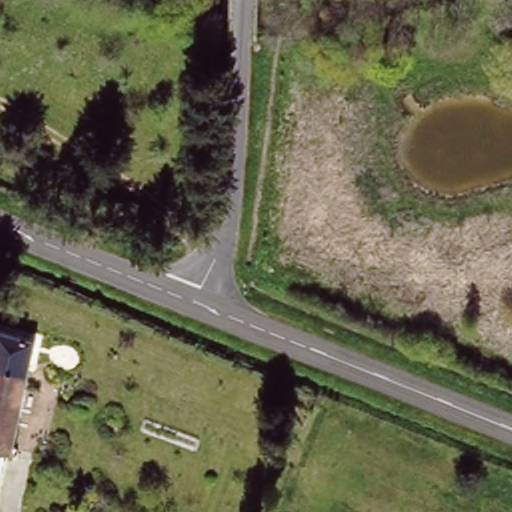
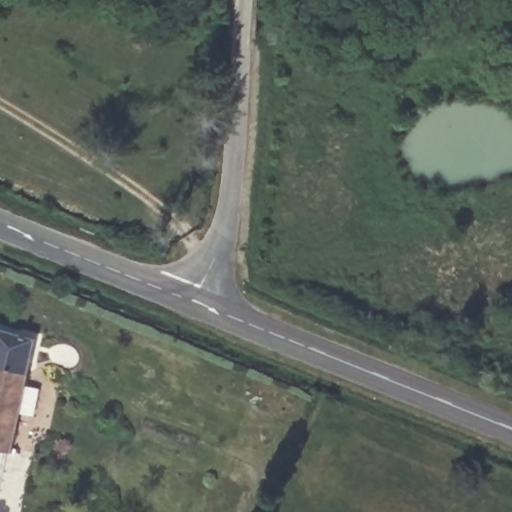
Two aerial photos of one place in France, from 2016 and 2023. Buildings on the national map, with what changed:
unchanged [(25,373),(42,392),(39,426),(23,449),(0,445),(0,329),(31,338),(25,373)]

